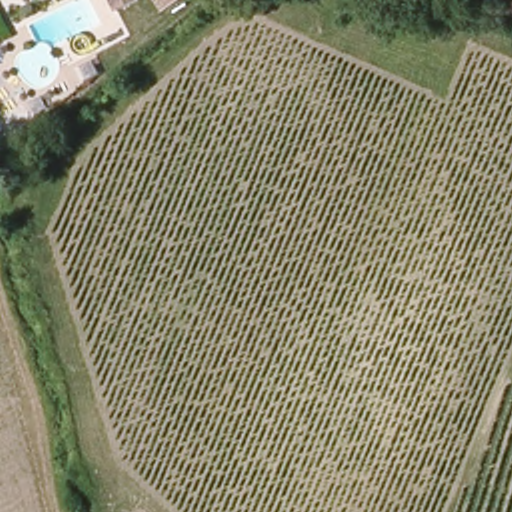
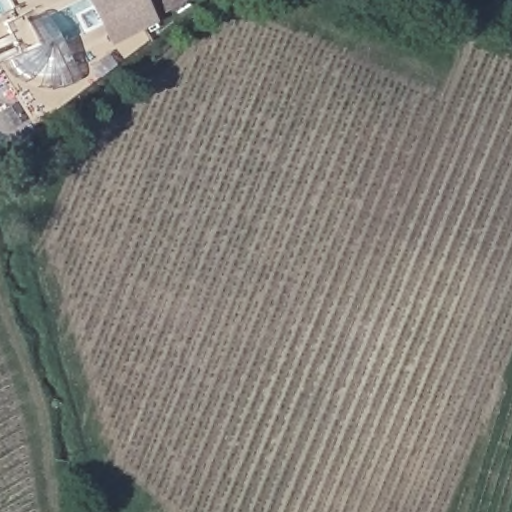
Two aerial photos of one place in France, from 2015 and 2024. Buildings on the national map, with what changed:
new [(108,47),(83,0),(142,0),(154,23),(108,47)]
new [(164,9),(159,0),(178,0),(164,9)]

